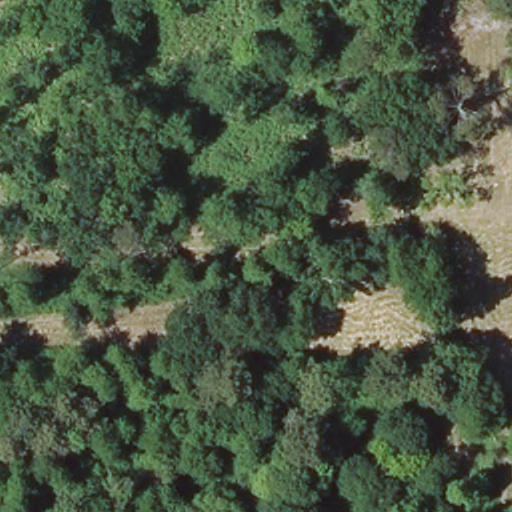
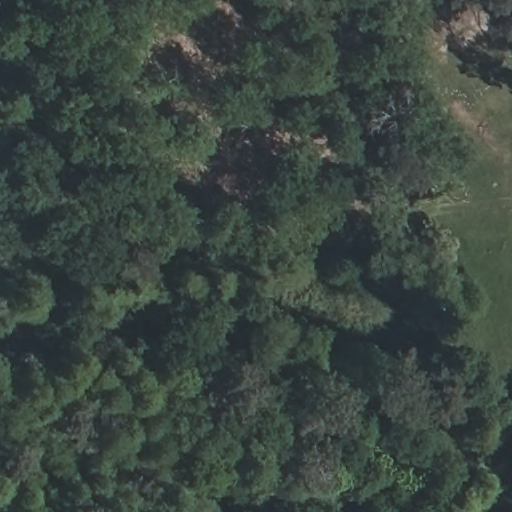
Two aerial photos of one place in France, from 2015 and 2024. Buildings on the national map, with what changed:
[]

